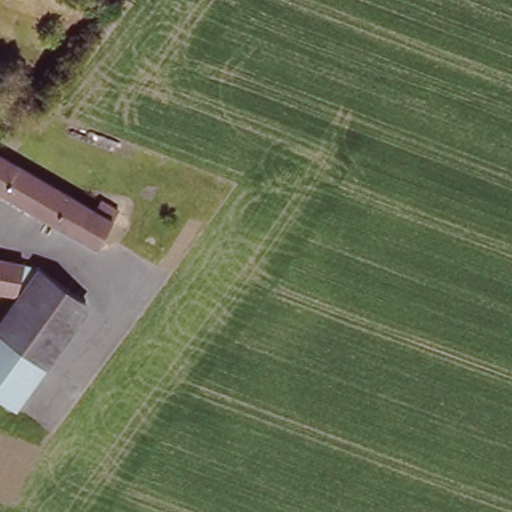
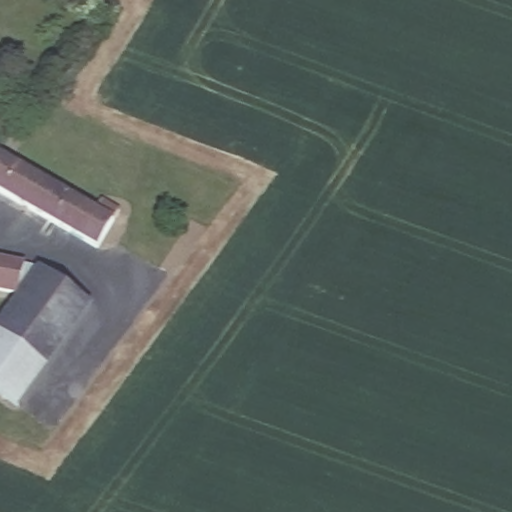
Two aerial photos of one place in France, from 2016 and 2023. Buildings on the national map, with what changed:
unchanged [(4,155),(97,207),(101,200),(117,209),(112,217),(97,244),(0,190),(0,157),(4,155)]
unchanged [(17,292),(0,289),(0,255),(1,255),(24,260),(17,292)]
unchanged [(64,350),(51,367),(0,331),(0,329),(3,325),(27,294),(37,268),(95,303),(95,307),(64,350)]
unchanged [(51,367),(18,412),(0,398),(0,331),(51,367)]

